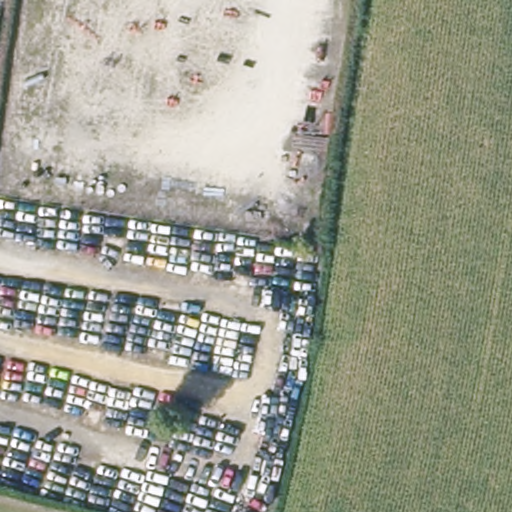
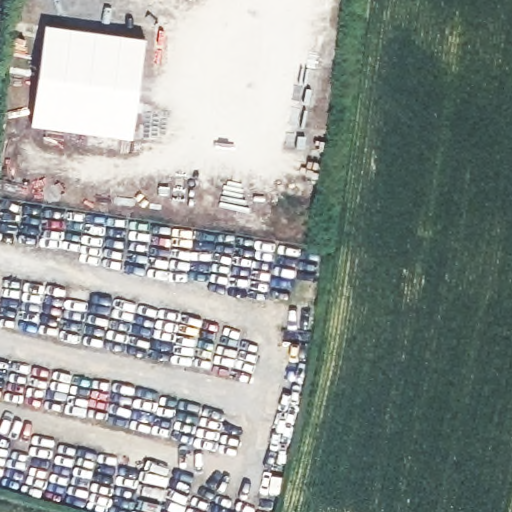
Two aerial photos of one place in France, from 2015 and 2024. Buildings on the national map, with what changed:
new [(146,36),(133,138),(32,125),(45,23),(146,36)]

